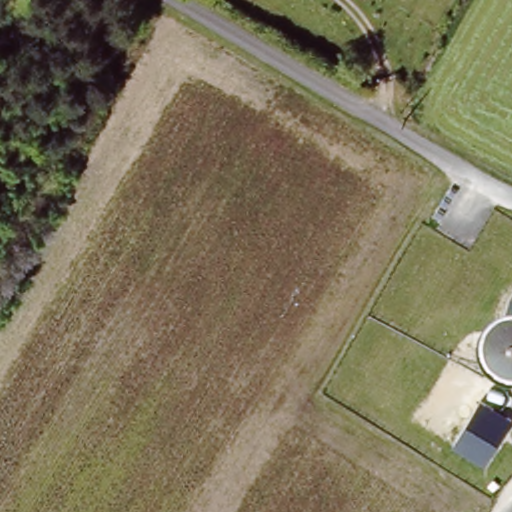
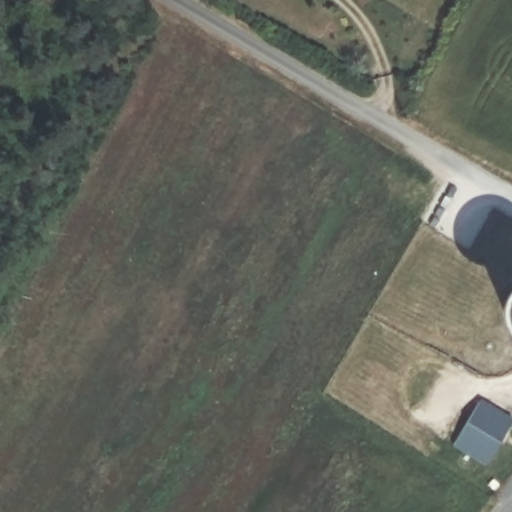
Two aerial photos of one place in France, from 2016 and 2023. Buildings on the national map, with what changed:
unchanged [(482,465),(450,444),(465,422),(496,443),(482,465)]

